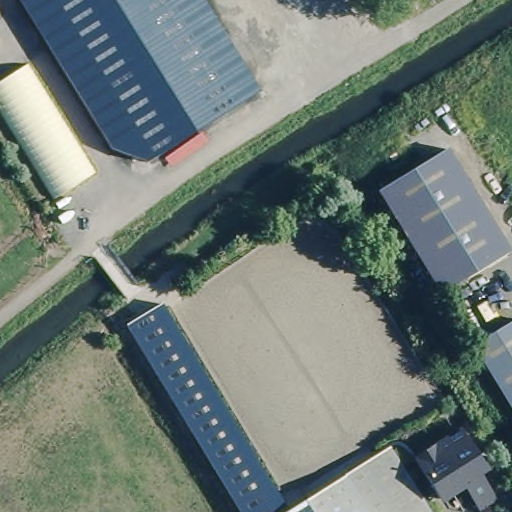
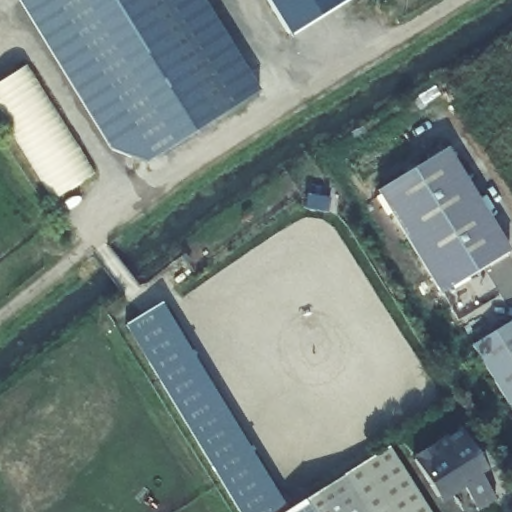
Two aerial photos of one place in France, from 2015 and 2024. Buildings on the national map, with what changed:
unchanged [(261,91),(146,163),(110,149),(18,0),(204,0),(261,91)]
new [(350,0),(289,37),(266,0),(349,0),(350,0)]
unchanged [(54,200),(0,109),(0,82),(29,64),(93,175),(54,200)]
unchanged [(444,142),(508,247),(440,289),(376,184),(444,142)]
unchanged [(287,510),(283,512),(238,512),(126,326),(162,303),(287,510)]
unchanged [(512,321),(512,409),(472,345),(512,321)]
unchanged [(475,511),(466,499),(457,485),(435,500),(409,461),(457,434),(468,451),(462,455),(483,487),(491,500),(475,511)]
unchanged [(420,512),(283,512),(379,450),(420,512)]

